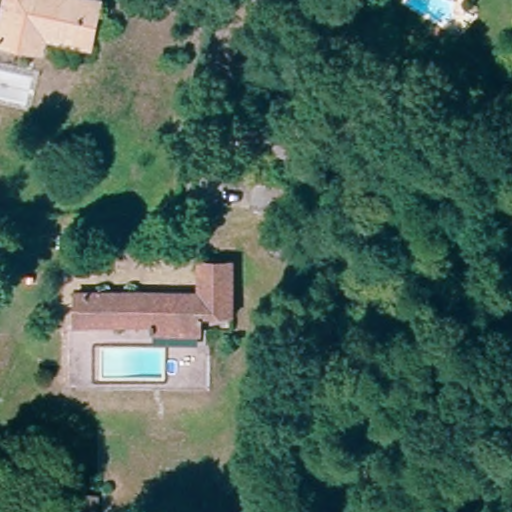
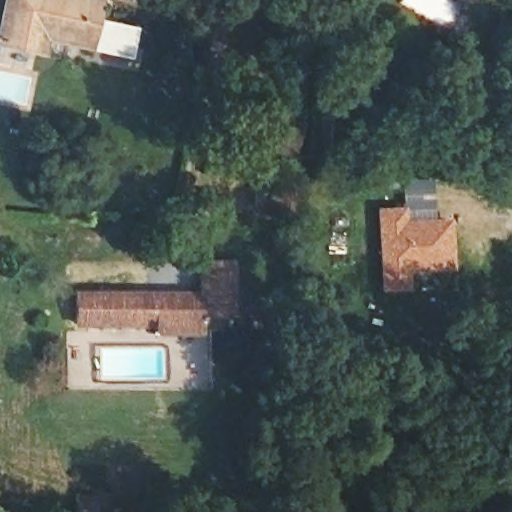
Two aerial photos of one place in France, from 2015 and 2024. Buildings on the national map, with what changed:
unchanged [(0,44),(0,37),(5,0),(100,0),(94,44),(52,37),(51,53),(26,49),(0,44)]
new [(433,177),(437,217),(406,219),(405,207),(402,207),(402,206),(401,180),(433,177)]
new [(402,206),(402,207),(405,207),(406,219),(437,217),(452,217),(452,273),(412,277),(413,289),(378,292),(376,208),(402,206)]
unchanged [(75,296),(87,296),(195,298),(196,266),(227,266),(227,317),(196,317),(195,335),(149,335),(150,328),(86,327),(75,327),(75,296)]

